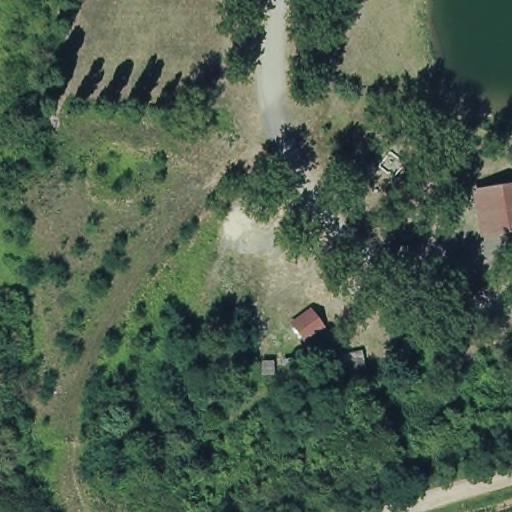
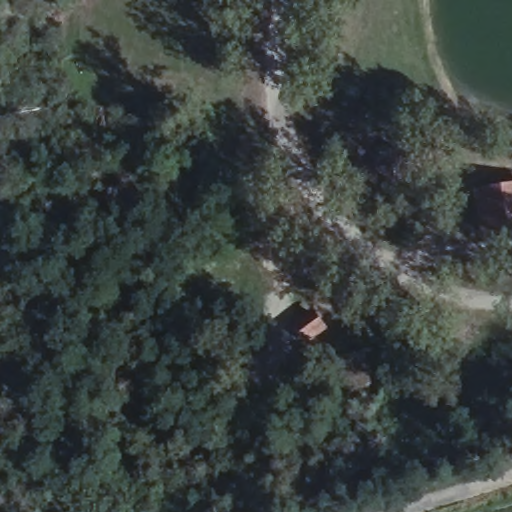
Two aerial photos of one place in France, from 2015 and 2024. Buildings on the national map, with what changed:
unchanged [(485,237),(476,191),(512,186),(512,231),(485,237)]
unchanged [(315,308),(331,327),(311,343),(294,325),(315,308)]
unchanged [(372,385),(330,391),(326,359),(365,351),(372,385)]

